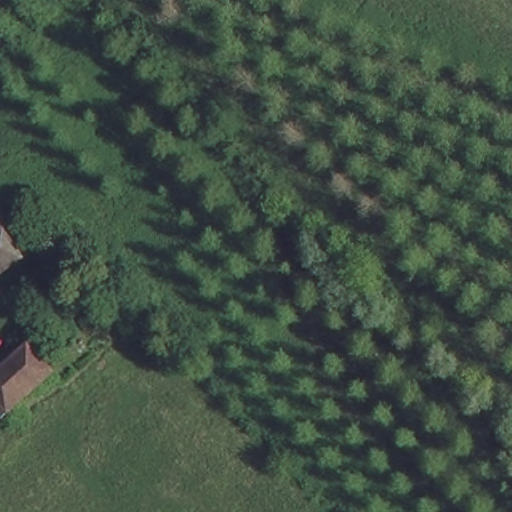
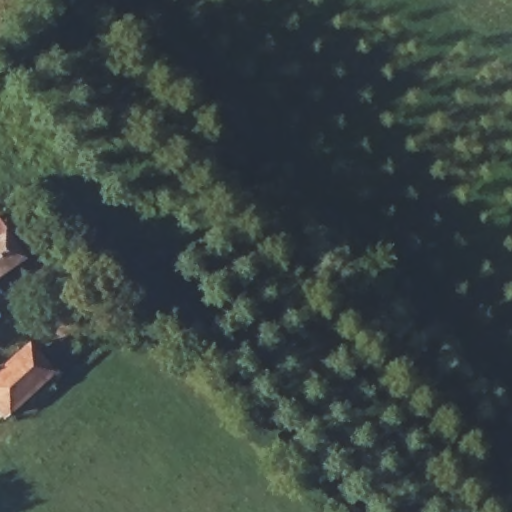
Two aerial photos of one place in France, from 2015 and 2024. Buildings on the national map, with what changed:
unchanged [(13,230),(28,254),(0,274),(0,229),(5,236),(13,230)]
unchanged [(0,412),(0,370),(30,348),(50,373),(0,412)]

